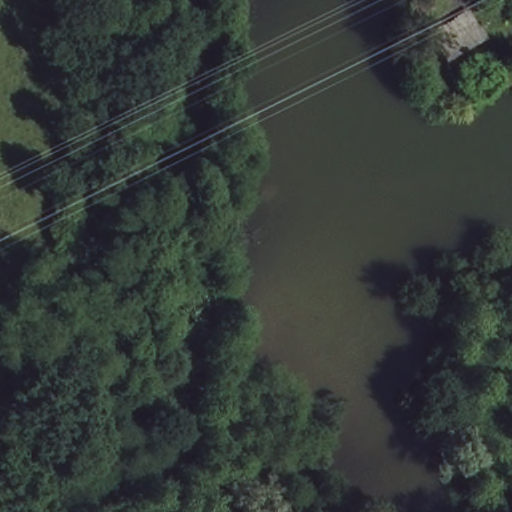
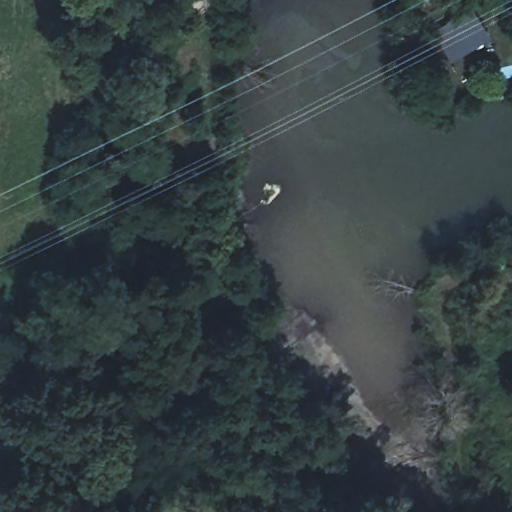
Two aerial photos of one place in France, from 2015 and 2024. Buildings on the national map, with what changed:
unchanged [(488,32),(452,61),(431,35),(465,5),(488,32)]

